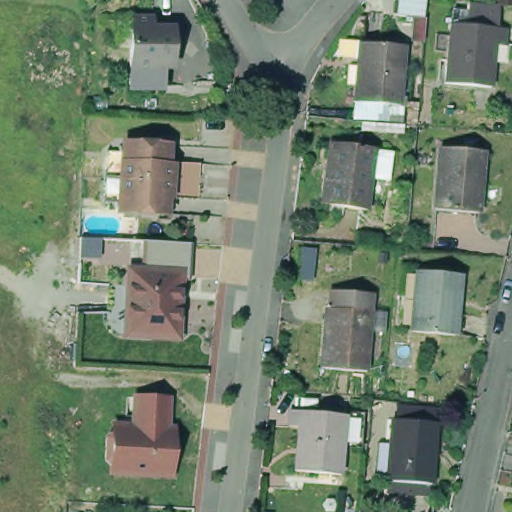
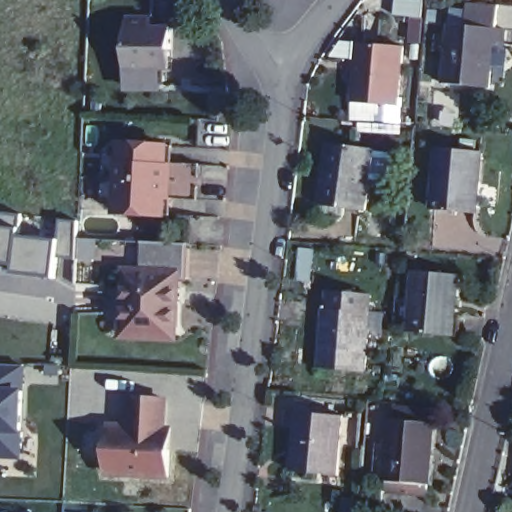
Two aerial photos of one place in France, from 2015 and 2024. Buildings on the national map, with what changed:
unchanged [(425,0),(423,15),(396,13),(397,0),(425,0)]
unchanged [(500,39),(490,39),(488,82),(442,80),(445,20),(461,21),(463,1),(485,0),(495,2),(495,21),(501,21),(500,39)]
unchanged [(125,17),(146,17),(146,27),(167,27),(167,49),(162,49),(161,69),(123,68),(125,17)]
unchanged [(356,37),(405,41),(398,103),(350,99),(356,37)]
unchanged [(120,158),(122,158),(123,137),(165,139),(165,160),(166,160),(163,210),(118,208),(120,158)]
unchanged [(322,138),(365,141),(360,199),(318,196),(322,138)]
unchanged [(437,143),(480,146),(475,205),(432,202),(437,143)]
new [(27,236),(61,239),(62,219),(81,221),(80,260),(65,257),(62,278),(21,274),(21,266),(0,264),(0,211),(28,213),(27,236)]
unchanged [(187,242),(186,278),(181,278),(180,340),(122,337),(125,267),(141,269),(143,240),(187,242)]
unchanged [(461,272),(457,331),(416,329),(416,322),(405,321),(409,271),(420,272),(420,269),(461,272)]
unchanged [(318,367),(322,309),(325,309),(325,290),(370,294),(369,312),(378,312),(375,356),(366,355),(365,371),(318,367)]
new [(0,365),(30,365),(30,390),(33,390),(32,434),(28,434),(27,461),(0,461),(0,365)]
unchanged [(170,450),(169,476),(108,474),(108,465),(103,460),(104,438),(110,432),(110,426),(131,426),(132,398),(166,399),(165,428),(170,428),(170,450)]
unchanged [(291,450),(292,425),(280,423),(280,407),(335,411),(335,413),(347,414),(346,430),(350,431),(348,446),(331,444),(328,472),(282,468),(285,450),(291,450)]
unchanged [(373,438),(386,439),(389,414),(435,419),(429,483),(383,479),(384,475),(369,474),(373,438)]

